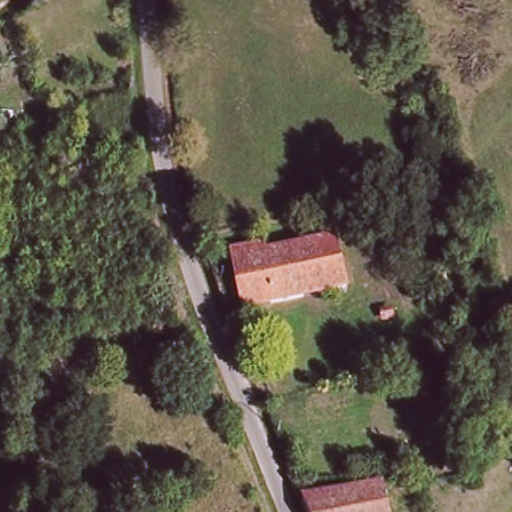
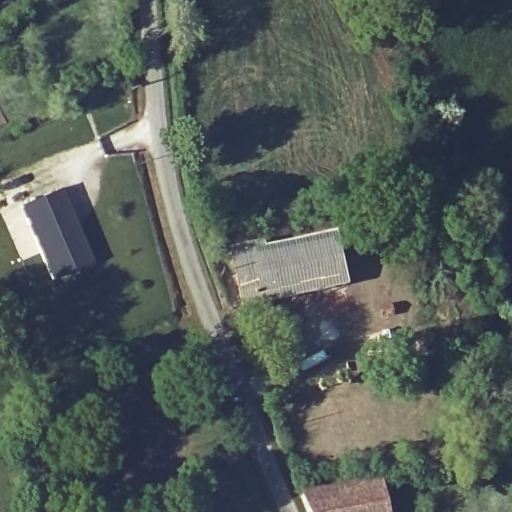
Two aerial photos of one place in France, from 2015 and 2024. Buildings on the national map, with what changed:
new [(96,264),(55,282),(25,208),(65,190),(96,264)]
unchanged [(239,310),(226,257),(256,250),(257,256),(332,242),(341,290),(239,310)]
unchanged [(380,484),(387,512),(309,512),(304,500),(380,484)]

